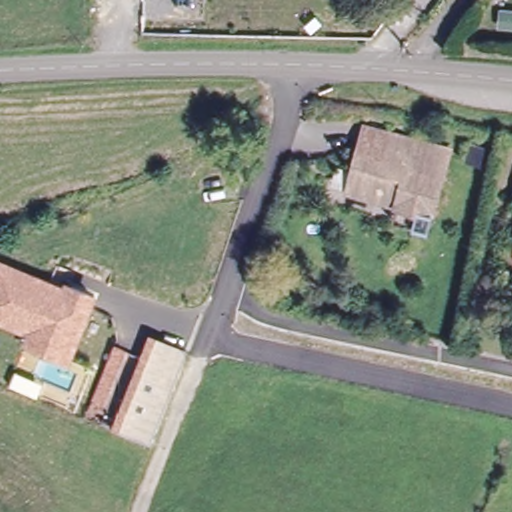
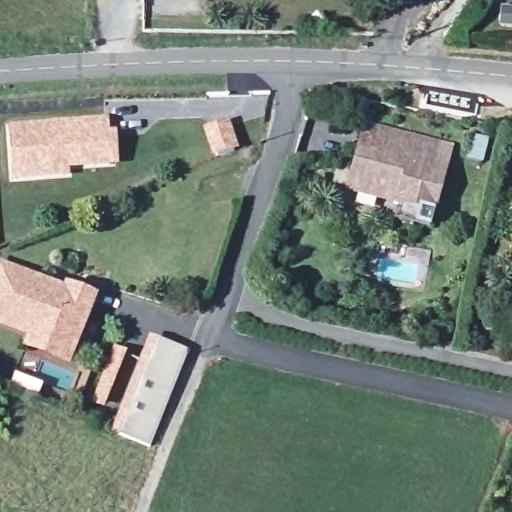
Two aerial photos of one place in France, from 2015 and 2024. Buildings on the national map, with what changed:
new [(108,117),(110,130),(116,130),(118,167),(69,170),(70,177),(11,180),(7,123),(108,117)]
new [(228,121),(239,150),(213,159),(201,130),(228,121)]
unchanged [(434,208),(354,189),(362,152),(363,147),(368,126),(449,145),(434,208)]
unchanged [(33,337),(0,325),(0,266),(71,292),(72,290),(93,297),(71,360),(55,354),(29,345),(33,337)]
unchanged [(113,434),(141,359),(148,338),(181,350),(180,354),(174,371),(147,444),(113,434)]

